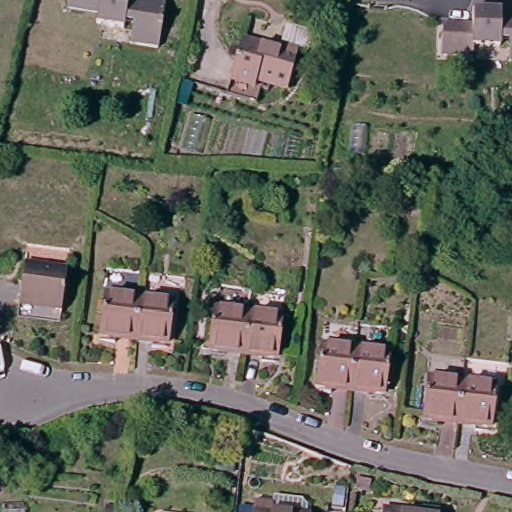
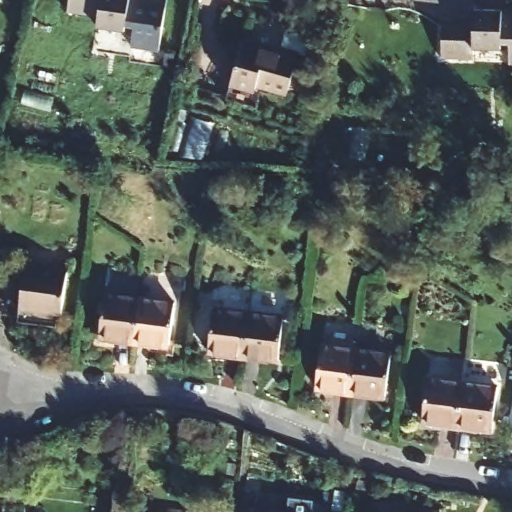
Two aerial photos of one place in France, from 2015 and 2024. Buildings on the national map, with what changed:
unchanged [(122,21),(121,27),(93,22),(95,11),(62,6),(64,0),(164,0),(156,50),(128,46),(131,23),(122,21)]
unchanged [(472,11),(512,11),(512,26),(501,25),(490,25),(470,25),(470,11),(472,11)]
unchanged [(437,39),(438,39),(438,26),(438,25),(457,25),(460,25),(465,25),(470,25),(490,25),(501,25),(512,26),(512,63),(505,63),(505,42),(497,42),(497,48),(470,48),(470,59),(437,58),(437,48),(437,39)]
unchanged [(223,109),(225,95),(231,55),(271,60),(275,34),(291,36),(296,41),(295,58),(288,57),(283,97),(251,93),(250,98),(249,113),(223,109)]
unchanged [(13,305),(16,272),(60,277),(54,319),(26,315),(12,313),(13,305)]
unchanged [(98,333),(103,292),(139,295),(134,337),(98,333)]
unchanged [(139,295),(172,299),(167,341),(134,337),(139,295)]
unchanged [(238,350),(207,346),(212,304),(243,308),(238,350)]
unchanged [(278,312),(273,354),(238,350),(243,308),(278,312)]
unchanged [(311,386),(315,346),(350,349),(345,390),(311,386)]
unchanged [(350,349),(383,352),(379,394),(345,390),(350,349)]
unchanged [(452,419),(418,414),(422,373),(458,377),(452,419)]
unchanged [(493,381),(487,423),(452,419),(458,377),(493,381)]
unchanged [(250,502),(269,504),(272,492),(296,496),(305,503),(305,512),(250,512),(250,502)]
unchanged [(377,506),(417,510),(418,505),(435,507),(434,512),(377,512),(377,506)]

